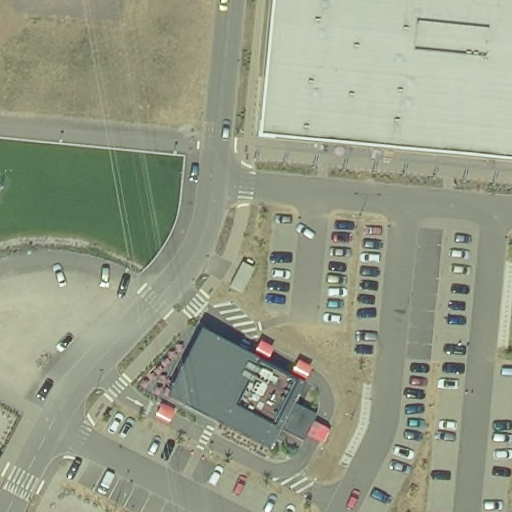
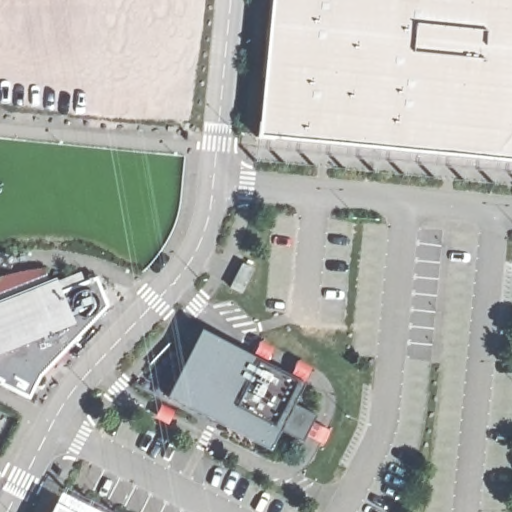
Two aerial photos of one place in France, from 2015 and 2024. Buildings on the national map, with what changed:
unchanged [(512,0),(512,161),(258,135),(271,0),(512,0)]
new [(12,274),(33,269),(42,270),(48,279),(77,267),(83,281),(95,277),(107,305),(40,378),(29,401),(0,387),(0,278),(12,274)]
unchanged [(201,329),(305,384),(295,404),(318,416),(303,442),(281,431),(271,451),(166,396),(201,329)]
new [(69,512),(49,512),(53,504),(69,512)]

